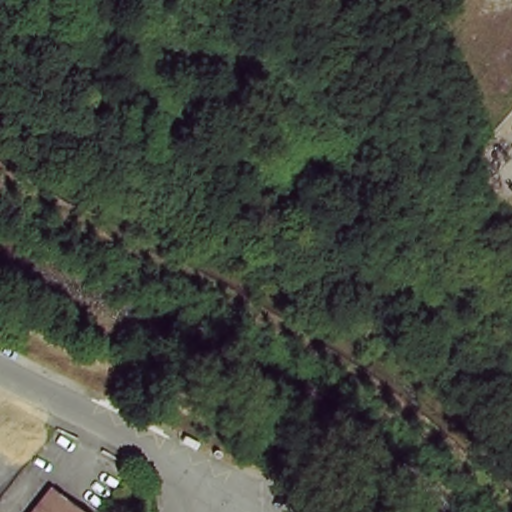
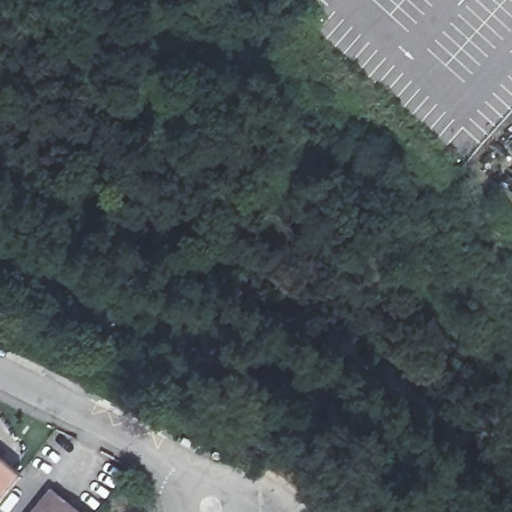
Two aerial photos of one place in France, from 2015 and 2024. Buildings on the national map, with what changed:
new [(0,496),(0,462),(16,475),(0,496)]
unchanged [(75,512),(34,512),(50,492),(75,512)]

